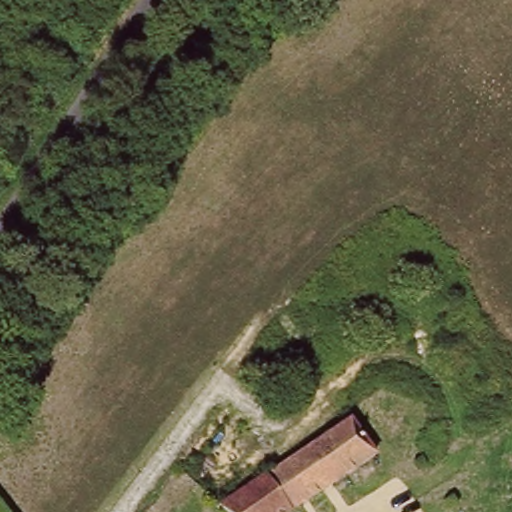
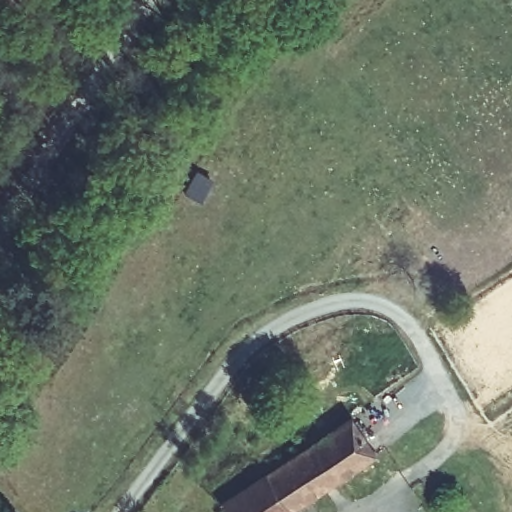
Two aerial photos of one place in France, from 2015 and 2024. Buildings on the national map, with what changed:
unchanged [(349,419),(375,459),(296,512),(223,512),(349,419)]

